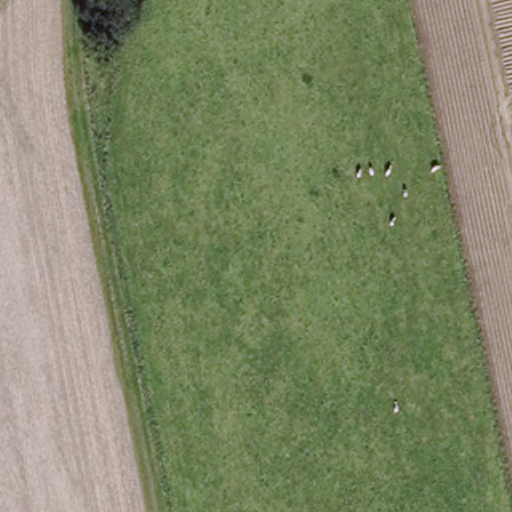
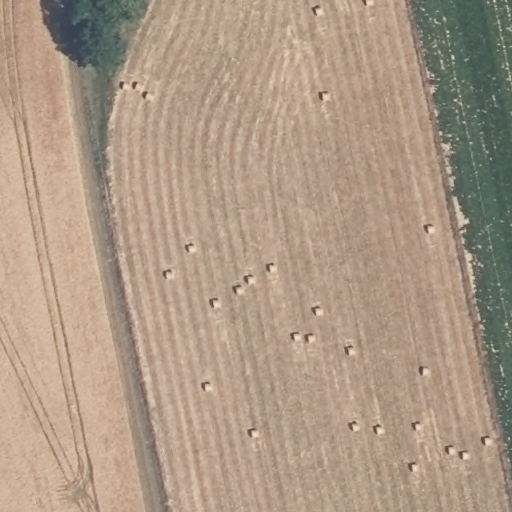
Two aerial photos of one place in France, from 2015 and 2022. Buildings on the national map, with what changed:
[]

